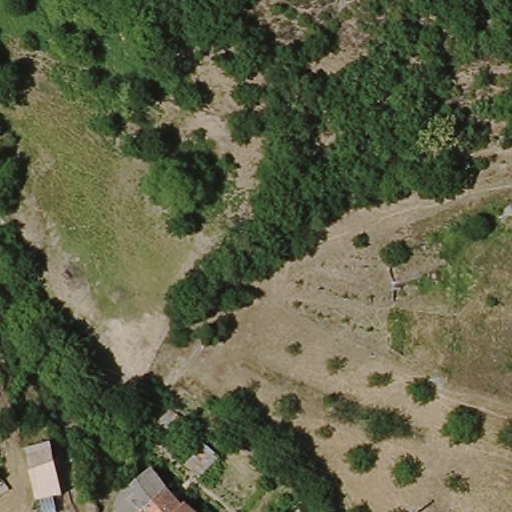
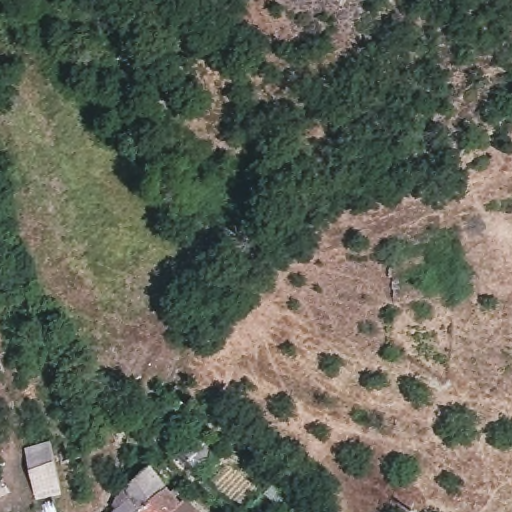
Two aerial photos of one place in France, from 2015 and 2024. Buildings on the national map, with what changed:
unchanged [(50,453),(59,450),(64,466),(59,467),(60,473),(55,477),(59,493),(51,497),(53,512),(38,512),(24,452),(48,446),(50,453)]
unchanged [(121,497),(120,495),(149,471),(166,491),(180,506),(183,505),(193,512),(116,512),(113,503),(121,497)]
unchanged [(4,506),(0,509),(0,500),(4,506)]

